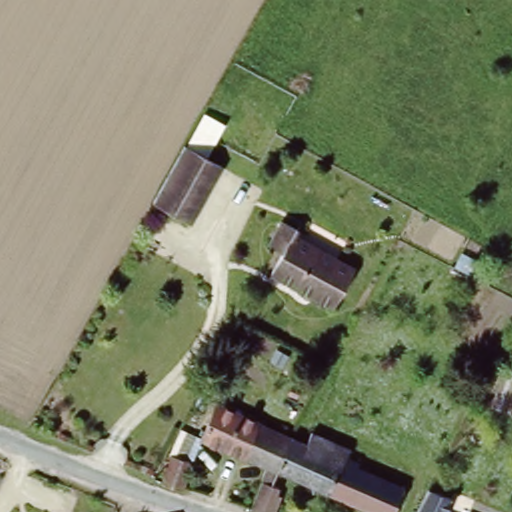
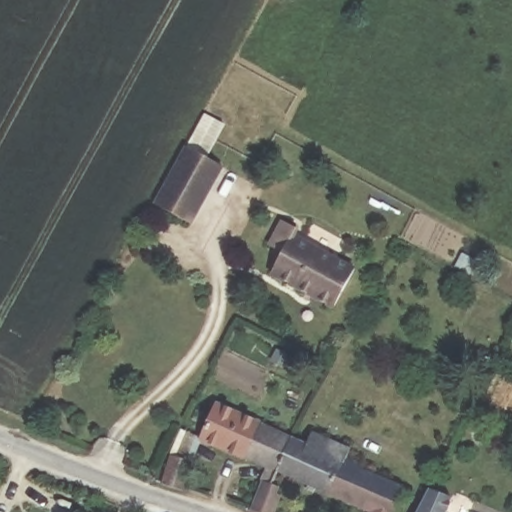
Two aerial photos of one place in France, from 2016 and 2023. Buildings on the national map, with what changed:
unchanged [(204,113),(225,124),(207,155),(223,166),(192,224),(154,202),(184,145),(204,113)]
unchanged [(303,229),(301,234),(356,264),(332,308),(270,274),(282,250),(268,243),(280,219),(303,229)]
unchanged [(211,440),(226,404),(291,434),(290,437),(287,443),(275,467),(211,440)]
unchanged [(287,443),(290,437),(291,434),(302,439),(308,427),(323,434),(321,437),(318,443),(319,443),(327,447),(329,443),(332,437),(347,444),(342,454),(343,454),(392,478),(398,481),(385,512),(364,512),(366,508),(275,467),(287,443)]
unchanged [(189,460),(182,483),(179,488),(152,478),(153,475),(166,452),(189,460)]
unchanged [(264,489),(269,479),(272,473),(282,478),(274,493),(282,497),(275,511),(274,512),(260,512),(246,507),(249,503),(258,486),(264,489)]
unchanged [(427,499),(450,509),(449,512),(421,512),(423,508),(427,499)]

